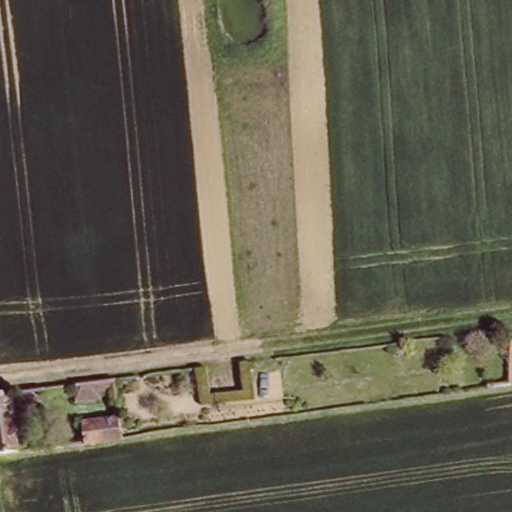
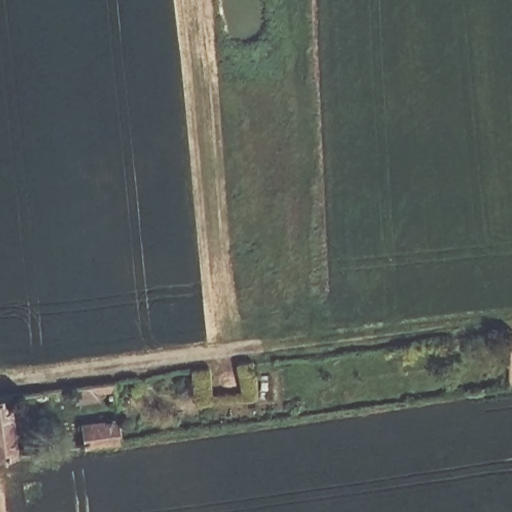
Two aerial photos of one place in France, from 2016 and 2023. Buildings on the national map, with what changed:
unchanged [(107,381),(112,408),(59,414),(57,391),(107,381)]
unchanged [(13,399),(20,454),(0,455),(0,399),(13,399)]
unchanged [(120,439),(78,444),(77,424),(115,421),(120,439)]

